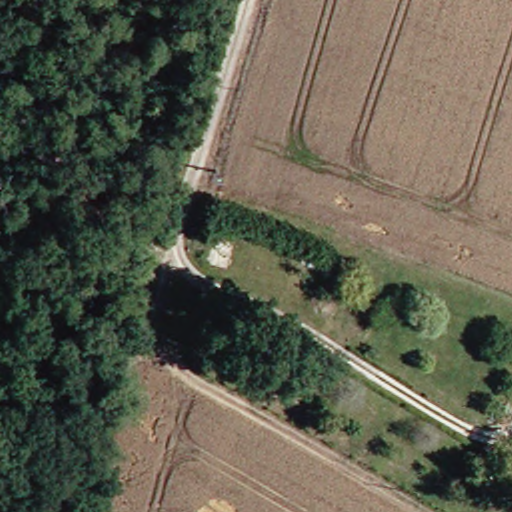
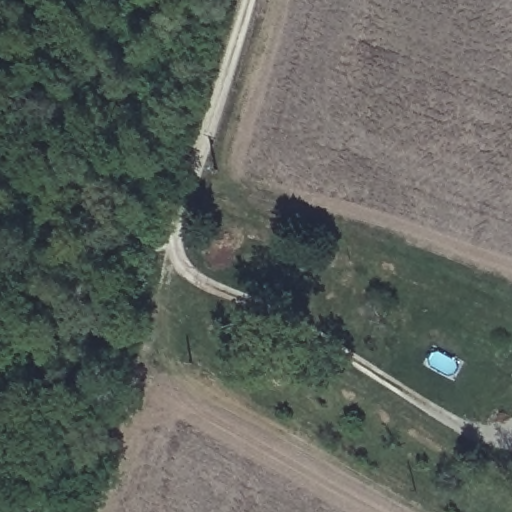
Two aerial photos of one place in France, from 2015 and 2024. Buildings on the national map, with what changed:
unchanged [(248,248),(239,278),(217,271),(225,241),(248,248)]

